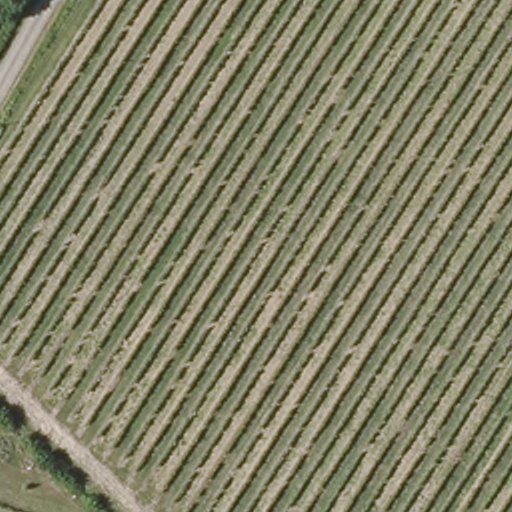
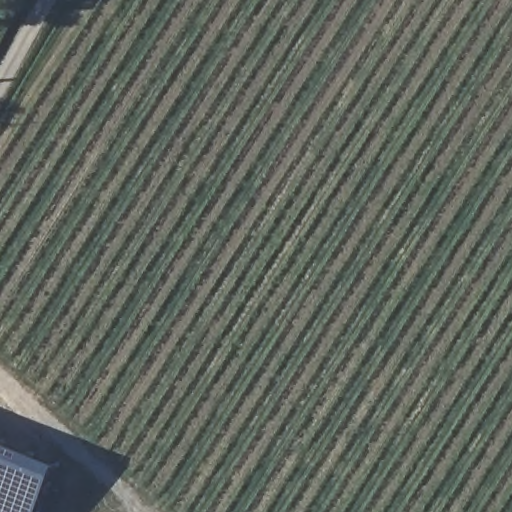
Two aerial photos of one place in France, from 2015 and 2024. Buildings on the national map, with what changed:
new [(39,512),(0,512),(0,441),(58,465),(39,512)]

